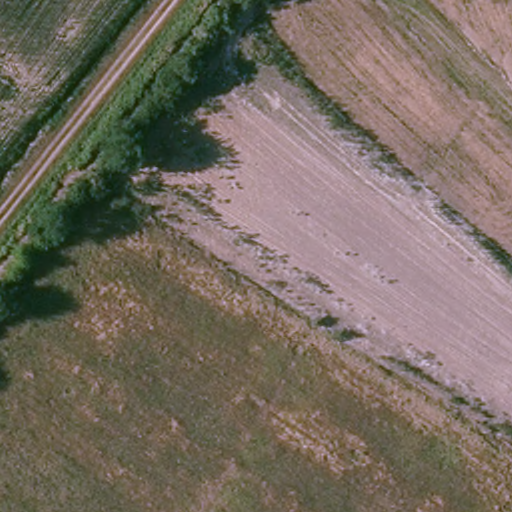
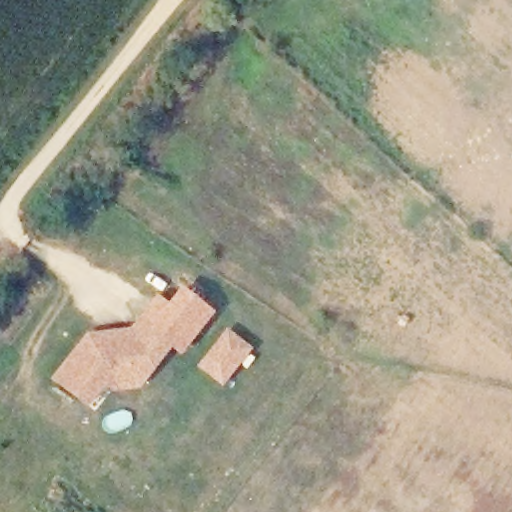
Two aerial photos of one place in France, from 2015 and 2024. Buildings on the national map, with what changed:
new [(157,294),(168,302),(180,286),(215,313),(181,356),(169,347),(174,341),(140,315),(157,294)]
new [(174,341),(137,390),(113,393),(104,387),(89,406),(51,379),(85,333),(131,328),(140,315),(174,341)]
new [(253,348),(220,388),(195,370),(225,330),(253,348)]

